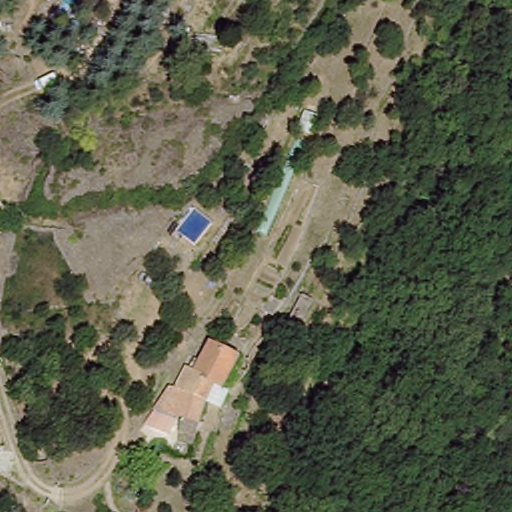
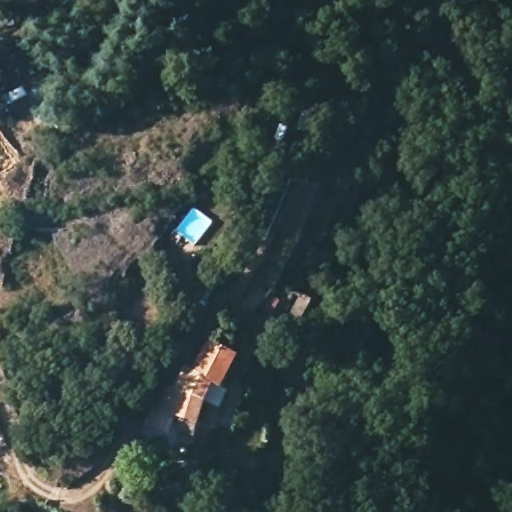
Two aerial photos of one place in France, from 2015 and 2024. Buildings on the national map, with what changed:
unchanged [(185,421),(180,419),(171,435),(152,424),(173,389),(178,392),(193,366),(200,369),(215,342),(243,353),(230,382),(220,384),(184,458),(168,453),(185,421)]

